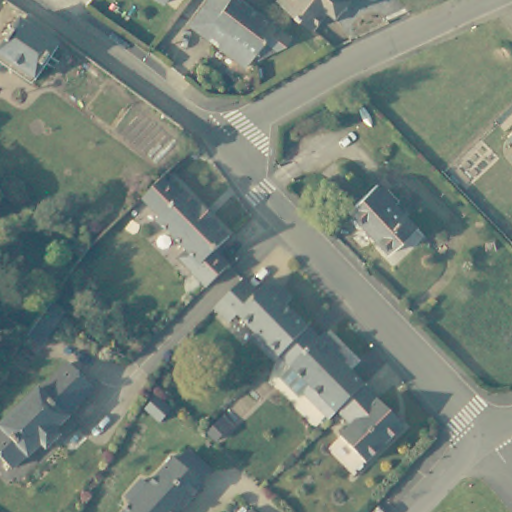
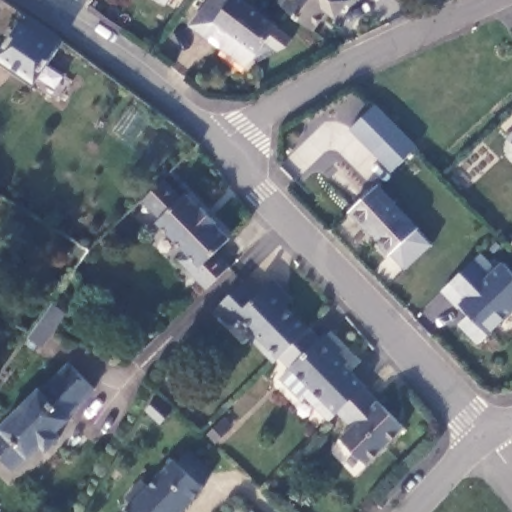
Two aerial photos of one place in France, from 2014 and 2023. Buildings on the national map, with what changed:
unchanged [(253,66),(228,47),(228,39),(222,34),(218,39),(198,24),(216,0),(250,0),(284,26),(253,66)]
unchanged [(327,13),(315,29),(279,0),(350,0),(337,18),(327,13)]
unchanged [(0,69),(0,47),(14,27),(16,29),(23,19),(58,43),(28,88),(0,69)]
new [(391,172),(348,129),(374,103),(417,145),(391,172)]
unchanged [(508,137),(512,133),(512,141),(508,137)]
unchanged [(218,246),(228,261),(208,286),(179,254),(183,249),(141,203),(161,175),(183,190),(185,184),(218,223),(217,226),(225,234),(218,246)]
unchanged [(403,269),(390,252),(349,208),(378,182),(418,225),(430,244),(403,269)]
new [(488,334),(477,344),(458,323),(465,316),(441,292),(481,253),(496,268),(503,262),(512,272),(512,311),(488,334)]
unchanged [(246,335),(251,332),(231,313),(223,321),(209,306),(222,293),(237,278),(251,292),(265,278),(285,298),(279,304),(302,327),(269,359),(246,335)]
unchanged [(302,395),(309,388),(289,368),(322,335),(338,351),(334,355),(364,385),(363,386),(337,412),(328,421),(302,395)]
unchanged [(40,390),(41,392),(68,362),(94,386),(66,415),(69,418),(56,431),(62,436),(50,449),(45,444),(31,458),(30,456),(16,471),(0,456),(0,436),(4,433),(2,431),(40,390)]
unchanged [(363,386),(404,427),(367,464),(340,438),(352,426),(337,412),(363,386)]
unchanged [(181,512),(127,512),(133,507),(126,499),(142,483),(148,489),(174,461),(177,463),(189,452),(211,473),(200,484),(203,488),(181,512)]

